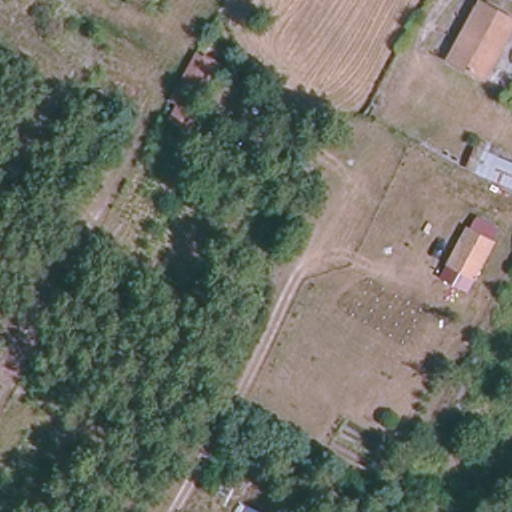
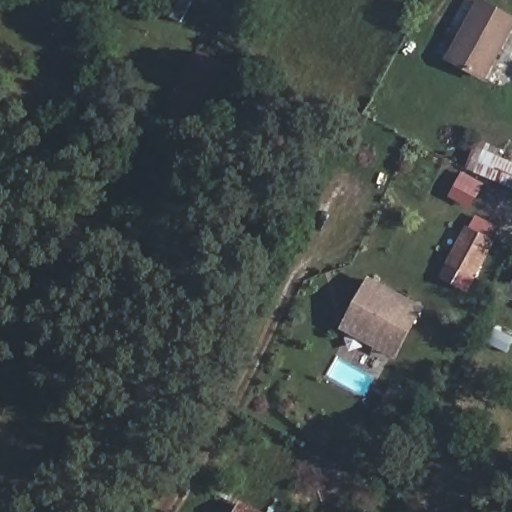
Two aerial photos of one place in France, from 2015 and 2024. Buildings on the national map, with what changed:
unchanged [(482,4),(512,18),(512,33),(489,81),(454,64),(482,4)]
unchanged [(202,112),(197,109),(188,127),(169,117),(174,104),(170,100),(194,48),(223,65),(202,112)]
unchanged [(480,138),(503,146),(499,155),(512,161),(512,189),(468,167),(480,138)]
new [(484,186),(472,208),(450,196),(462,174),(484,186)]
unchanged [(474,279),(445,262),(464,224),(494,240),(474,279)]
new [(340,329),(368,276),(424,306),(396,359),(340,329)]
new [(512,303),(504,299),(512,284),(512,303)]

